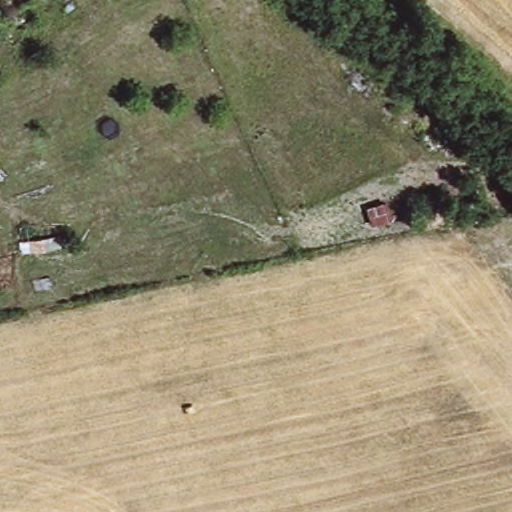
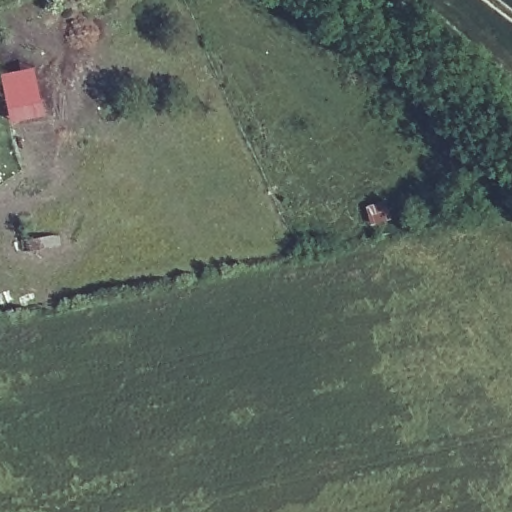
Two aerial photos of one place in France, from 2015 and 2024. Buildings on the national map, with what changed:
new [(0,77),(0,74),(34,66),(45,116),(11,124),(0,77)]

